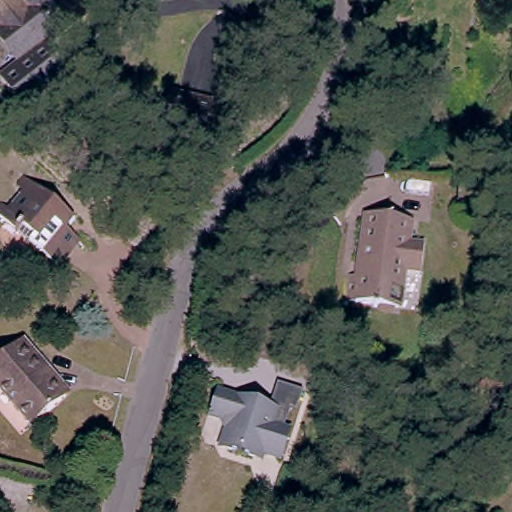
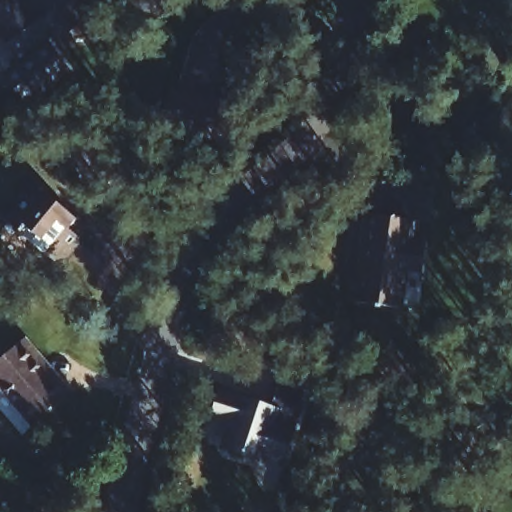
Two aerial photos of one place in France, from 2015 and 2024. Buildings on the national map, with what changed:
unchanged [(63,36),(55,42),(77,74),(30,105),(10,74),(30,60),(30,59),(10,31),(12,30),(0,13),(0,10),(14,0),(86,0),(98,19),(67,40),(63,36)]
unchanged [(70,232),(78,240),(55,265),(28,244),(33,239),(21,227),(15,234),(0,220),(0,214),(27,185),(75,225),(70,232)]
unchanged [(402,217),(400,238),(416,240),(412,270),(397,268),(393,301),(347,297),(347,276),(352,277),(358,212),(402,217)]
unchanged [(28,362),(57,393),(25,423),(0,397),(0,347),(13,335),(35,356),(28,362)]
unchanged [(261,420),(268,396),(295,405),(289,423),(284,422),(277,445),(280,453),(275,466),(267,470),(252,464),(240,469),(224,463),(218,452),(222,441),(218,435),(202,427),(211,402),(261,420)]

